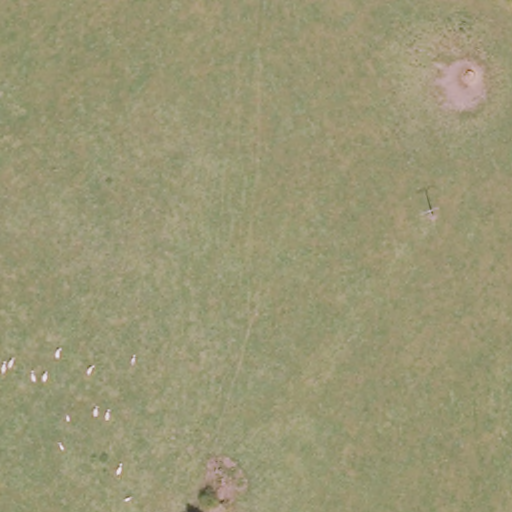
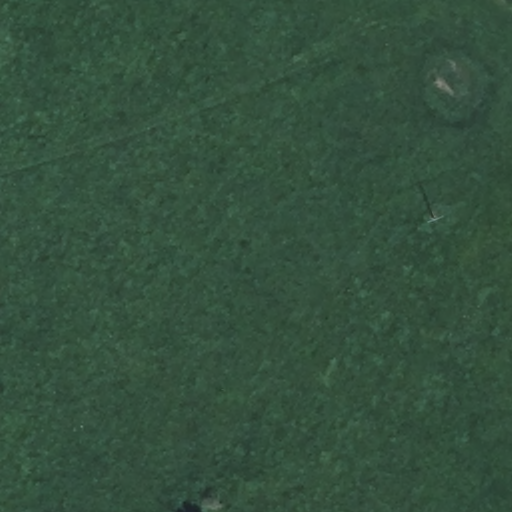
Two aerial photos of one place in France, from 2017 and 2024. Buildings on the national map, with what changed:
unchanged [(246,474),(258,483),(247,498),(235,490),(246,474)]

